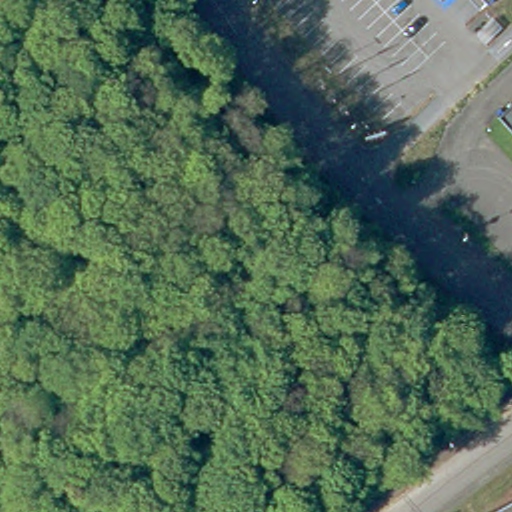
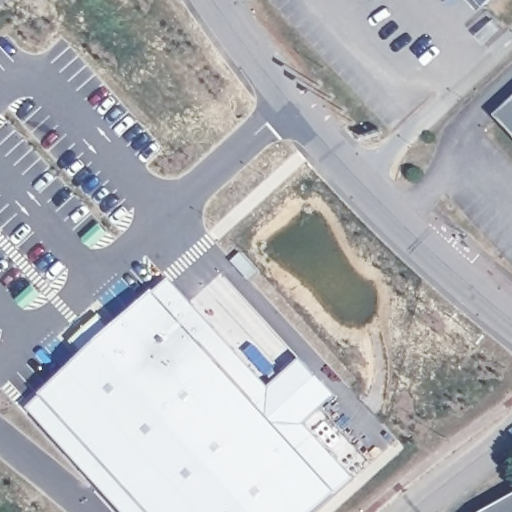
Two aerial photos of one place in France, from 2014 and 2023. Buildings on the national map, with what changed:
unchanged [(479,5),(474,0),(485,0),(479,5)]
unchanged [(496,113),(512,98),(512,130),(496,113)]
new [(79,342),(102,321),(114,333),(172,282),(272,390),(305,362),(336,395),(307,423),(354,480),(319,512),(131,512),(34,407),(92,357),(79,342)]
unchanged [(487,512),(512,498),(512,512),(487,512)]

